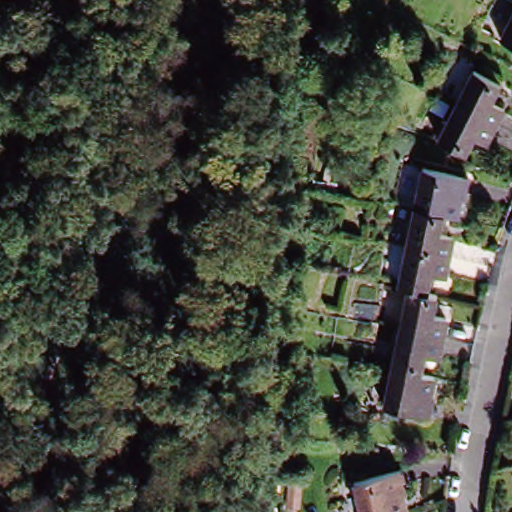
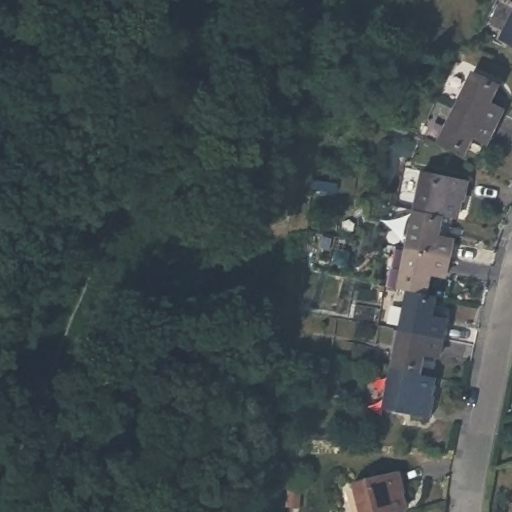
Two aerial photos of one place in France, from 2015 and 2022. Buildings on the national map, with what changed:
unchanged [(503,40),(512,21),(512,45),(503,40)]
unchanged [(475,76),(507,92),(497,110),(506,115),(498,132),(456,112),(475,76)]
unchanged [(498,132),(488,151),(478,147),(469,162),(438,147),(456,112),(498,132)]
unchanged [(421,176),(468,187),(464,206),(458,205),(454,227),(443,225),(412,218),(421,176)]
unchanged [(443,225),(439,241),(450,244),(447,260),(404,252),(412,218),(443,225)]
unchanged [(442,283),(431,281),(428,297),(405,292),(396,291),(404,252),(447,260),(442,283)]
unchanged [(432,321),(444,323),(440,340),(397,331),(405,292),(428,297),(437,300),(432,321)]
unchanged [(435,363),(423,360),(420,378),(388,371),(397,331),(440,340),(435,363)]
unchanged [(420,378),(431,380),(426,402),(432,403),(428,422),(379,412),(388,371),(420,378)]
unchanged [(351,486),(400,472),(409,498),(402,501),(406,512),(358,512),(351,486)]

